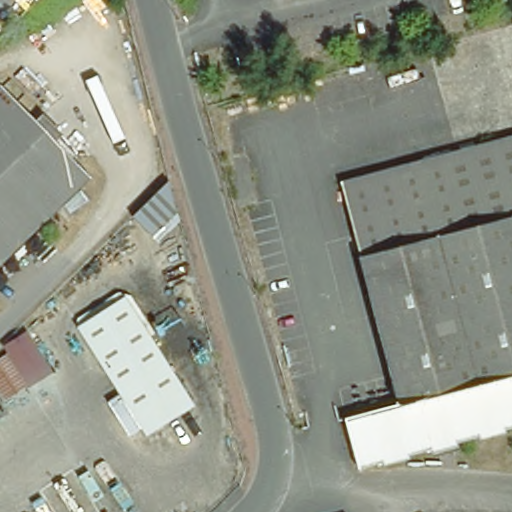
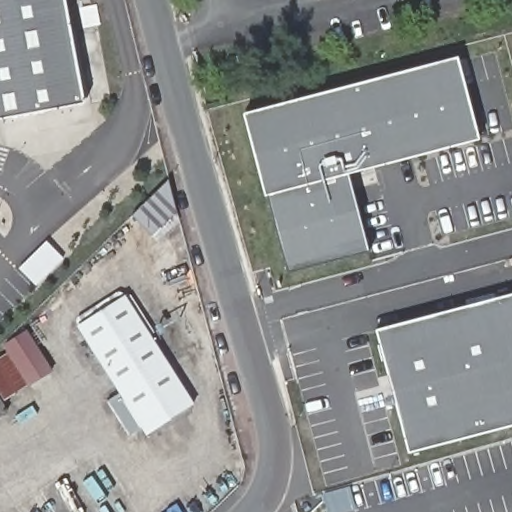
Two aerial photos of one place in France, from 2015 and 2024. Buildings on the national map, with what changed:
new [(0,0),(65,0),(85,105),(0,120),(0,0)]
new [(458,58),(480,141),(350,175),(371,254),(288,276),(267,197),(265,198),(243,114),(458,58)]
demolished [(0,83),(1,82),(19,69),(41,91),(25,107),(91,179),(0,264),(0,83)]
demolished [(336,177),(444,147),(512,128),(512,213),(464,225),(356,253),(336,177)]
unchanged [(156,242),(147,235),(128,216),(169,176),(177,206),(180,219),(156,242)]
demolished [(512,213),(512,406),(464,225),(512,213)]
demolished [(512,406),(512,424),(502,427),(474,434),(404,452),(404,454),(380,461),(379,458),(356,464),(344,412),(395,398),(356,253),(464,225),(512,406)]
unchanged [(74,315),(116,287),(199,415),(155,443),(74,315)]
new [(408,455),(375,330),(512,294),(512,427),(408,455)]
unchanged [(0,359),(8,355),(3,348),(26,333),(51,371),(4,400),(0,394),(0,359)]
unchanged [(0,403),(6,413),(0,417),(0,403)]

